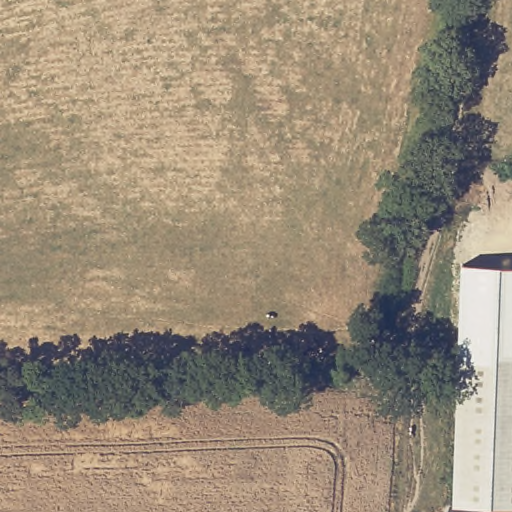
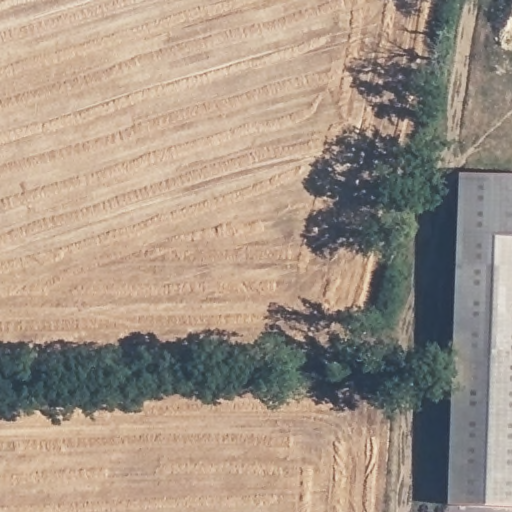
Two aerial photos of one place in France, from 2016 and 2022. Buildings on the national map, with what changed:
new [(464,173),(512,175),(512,266),(478,265),(460,265),(464,173)]
unchanged [(457,355),(460,265),(512,266),(512,357),(457,355)]
unchanged [(512,357),(512,508),(451,505),(457,355),(512,357)]

